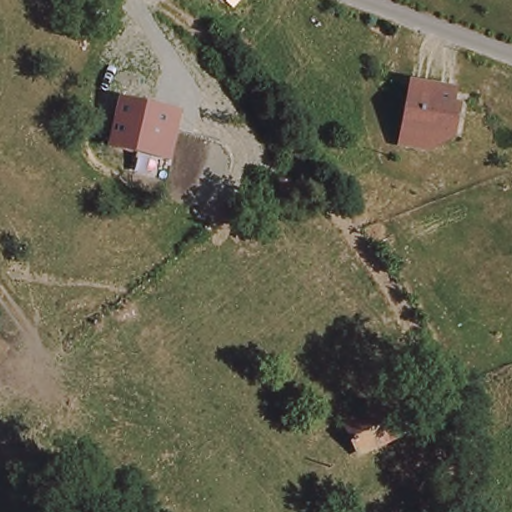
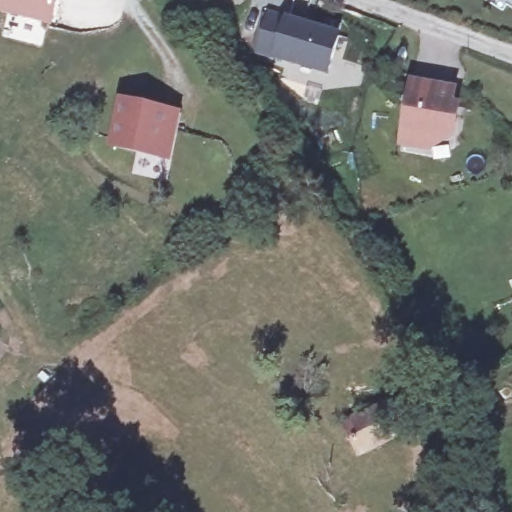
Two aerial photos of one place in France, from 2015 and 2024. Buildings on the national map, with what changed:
new [(48,20),(0,7),(0,0),(53,0),(48,20)]
new [(271,15),(339,37),(328,71),(260,49),(271,15)]
unchanged [(404,141),(406,134),(417,81),(459,90),(454,111),(461,112),(456,135),(434,131),(432,139),(430,147),(404,141)]
unchanged [(171,164),(107,149),(121,99),(183,111),(171,164)]
unchanged [(389,401),(401,427),(354,451),(346,423),(389,401)]

